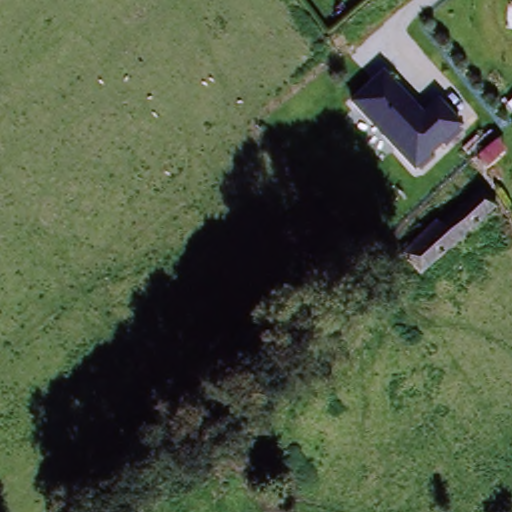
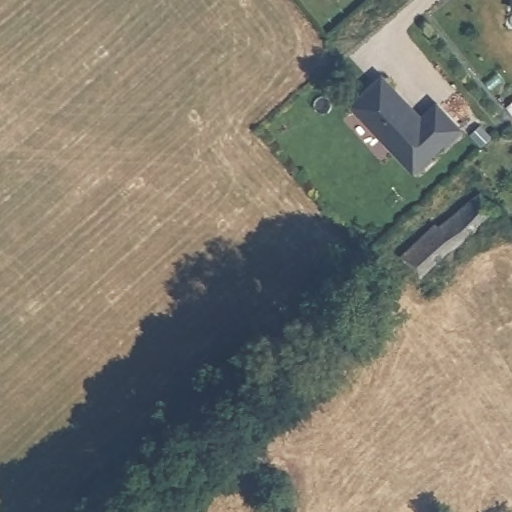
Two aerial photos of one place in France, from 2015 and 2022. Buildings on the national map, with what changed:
unchanged [(414,176),(348,104),(374,80),(418,125),(438,106),(462,130),(414,176)]
unchanged [(480,197),(495,216),(422,277),(404,258),(480,197)]

